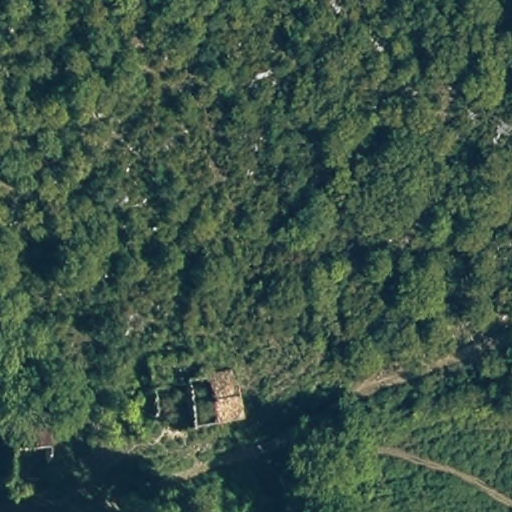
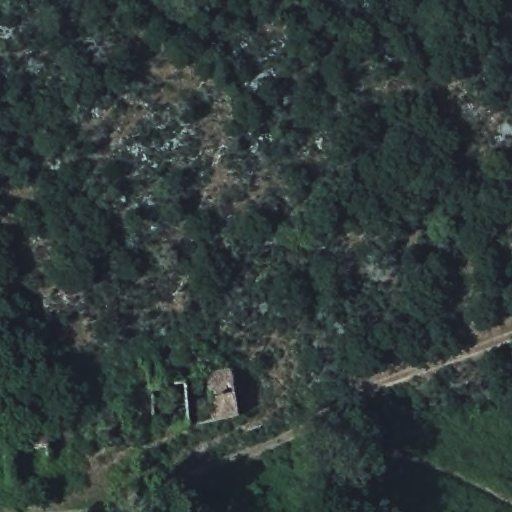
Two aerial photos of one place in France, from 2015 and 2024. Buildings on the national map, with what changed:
unchanged [(240,417),(210,424),(209,419),(204,374),(228,367),(240,417)]

